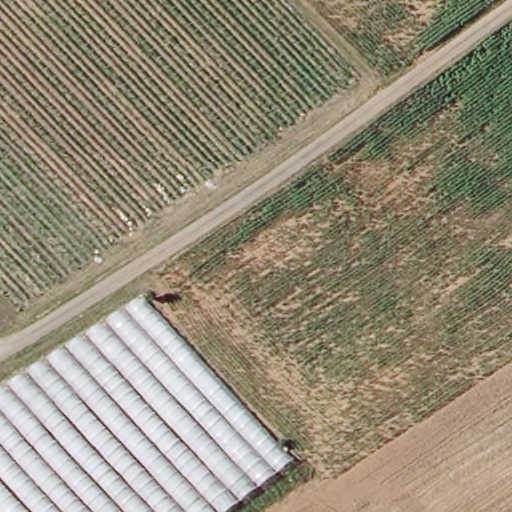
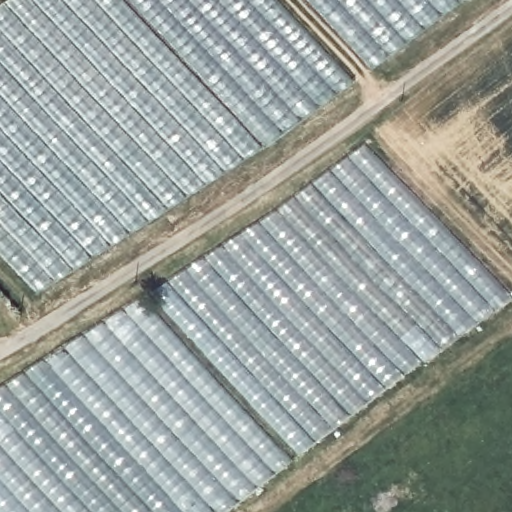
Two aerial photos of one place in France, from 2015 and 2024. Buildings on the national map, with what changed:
new [(2,0),(124,0),(240,122),(261,147),(244,159),(225,172),(166,210),(36,293),(0,255),(0,1),(2,0)]
new [(352,79),(300,120),(261,147),(240,122),(124,0),(278,0),(352,79)]
new [(205,255),(255,224),(365,143),(412,195),(512,297),(512,298),(492,314),(423,363),(405,375),(299,457),(175,322),(152,293),(169,280),(205,255)]
unchanged [(289,459),(222,512),(0,512),(0,391),(137,302),(289,459)]

